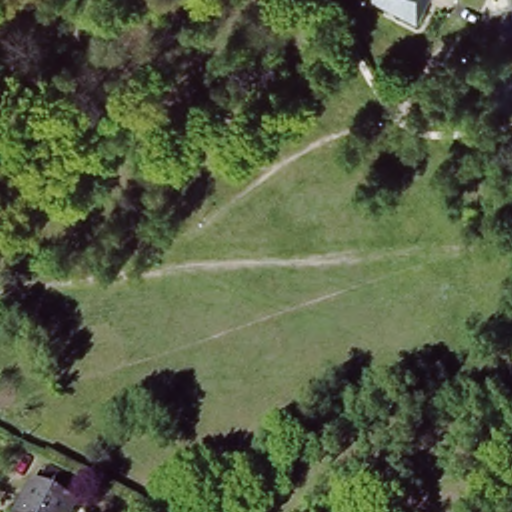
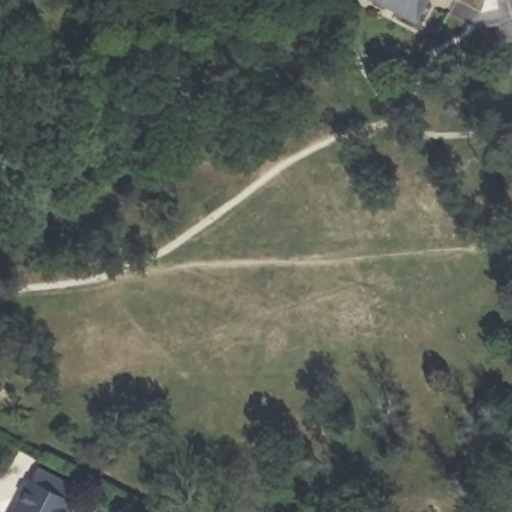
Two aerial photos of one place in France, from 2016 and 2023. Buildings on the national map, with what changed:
unchanged [(364,0),(428,0),(415,26),(364,0)]
unchanged [(36,490),(40,492),(47,477),(79,492),(72,507),(77,510),(76,512),(24,512),(36,490)]

